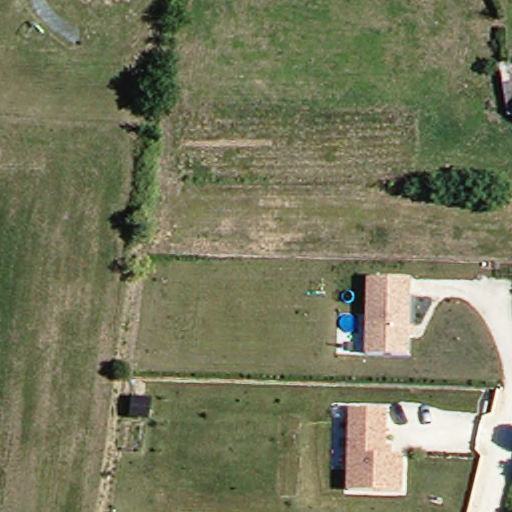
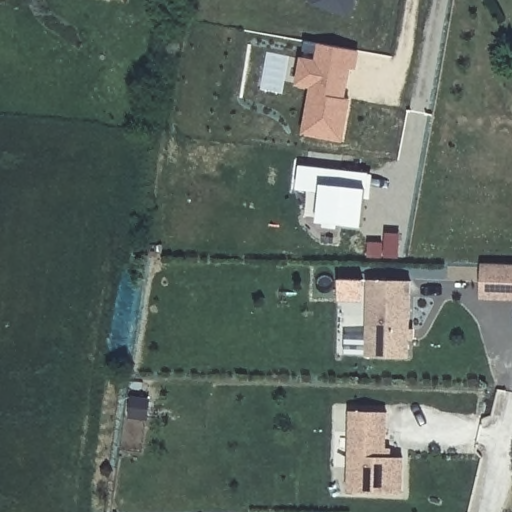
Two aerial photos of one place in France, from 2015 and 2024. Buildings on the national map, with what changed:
new [(332,9),(316,4),(318,0),(356,0),(352,15),(332,9)]
new [(356,69),(351,68),(346,99),(352,101),(346,144),(303,138),(310,91),(295,89),(301,58),(316,59),(318,44),(358,52),(356,69)]
new [(372,200),(367,200),(364,233),(316,228),(320,194),(297,192),(298,167),(375,174),(372,200)]
new [(483,269),(512,270),(512,299),(482,298),(483,269)]
unchanged [(412,282),(410,358),(368,357),(370,281),(412,282)]
unchanged [(404,454),(403,490),(349,488),(351,407),(388,408),(387,445),(392,446),(392,454),(404,454)]

